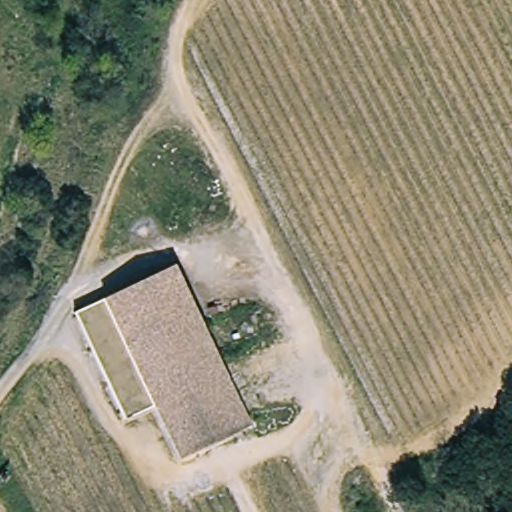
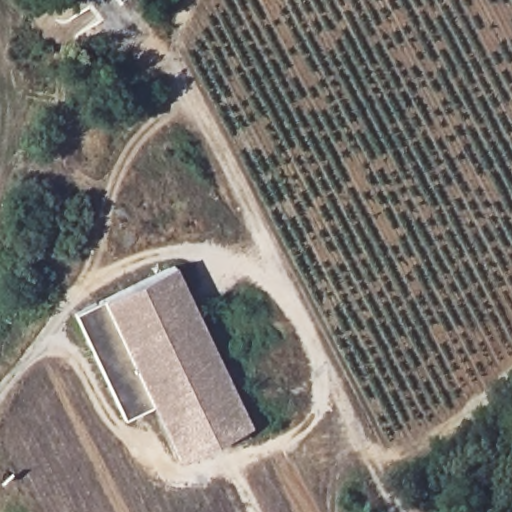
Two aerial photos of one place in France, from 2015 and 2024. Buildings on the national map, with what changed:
unchanged [(253,433),(182,465),(159,410),(127,424),(79,316),(180,271),(253,433)]

